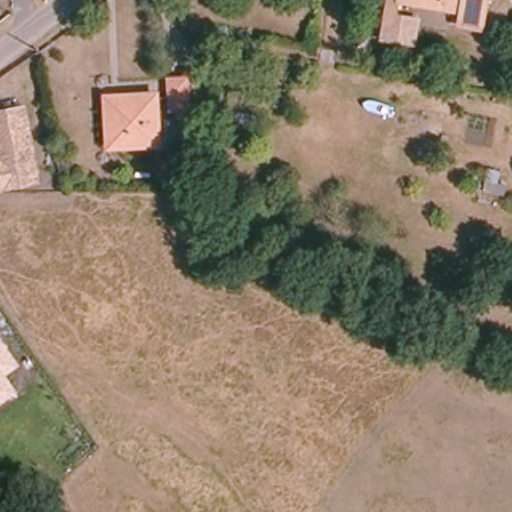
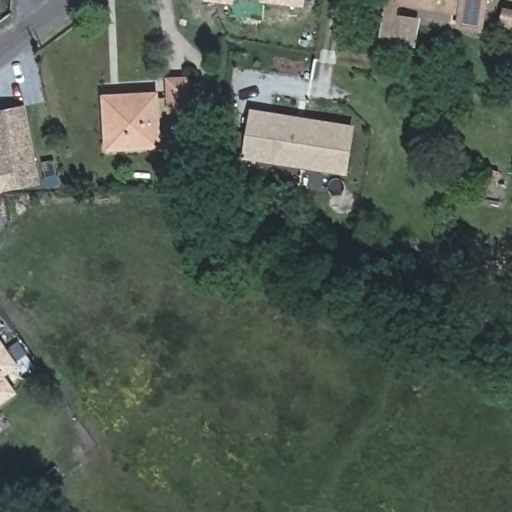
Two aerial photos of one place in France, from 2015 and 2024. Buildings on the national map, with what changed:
new [(232,3),(206,1),(206,0),(232,0),(232,3)]
new [(304,5),(268,2),(267,0),(305,0),(304,5)]
unchanged [(480,28),(459,24),(462,11),(400,0),(485,0),(480,28)]
new [(512,9),(512,28),(502,25),(507,7),(512,9)]
unchanged [(167,80),(187,79),(189,109),(169,110),(167,80)]
unchanged [(157,145),(107,146),(106,105),(106,96),(132,95),(156,94),(157,145)]
unchanged [(0,191),(0,110),(26,105),(42,181),(0,191)]
new [(254,111),(353,127),(346,171),(246,155),(254,111)]
unchanged [(6,374),(19,393),(0,404),(0,336),(21,364),(6,374)]

